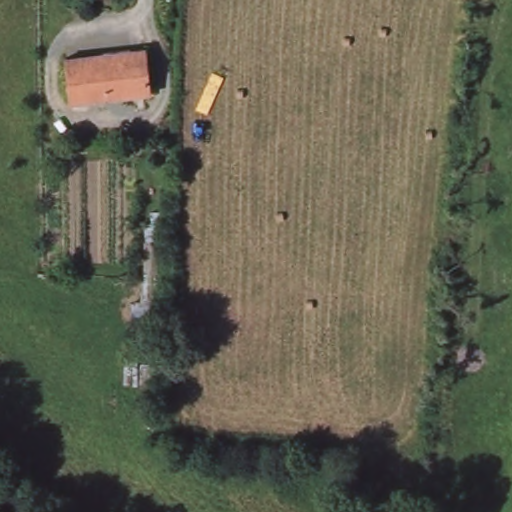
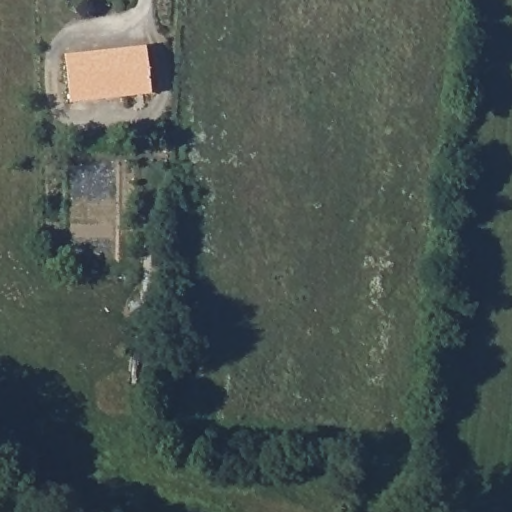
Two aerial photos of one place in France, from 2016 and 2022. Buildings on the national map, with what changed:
unchanged [(104,57),(104,53),(146,47),(152,93),(71,102),(67,62),(104,57)]
unchanged [(144,221),(164,223),(162,306),(144,308),(144,221)]

